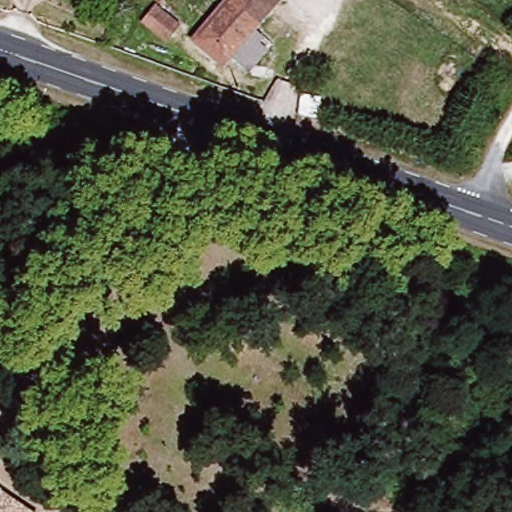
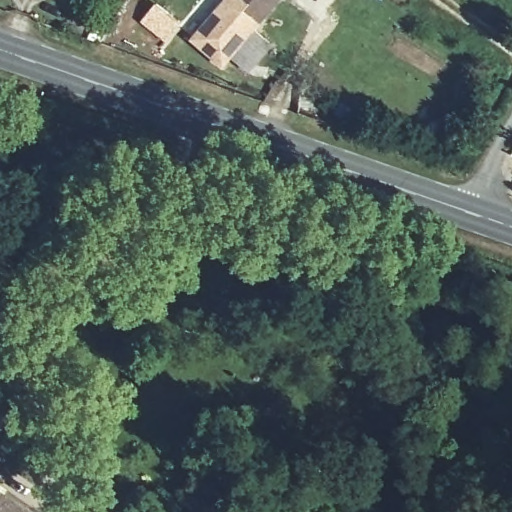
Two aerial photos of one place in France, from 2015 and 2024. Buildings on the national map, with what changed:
unchanged [(259,0),(267,8),(218,64),(187,37),(220,0),(259,0)]
unchanged [(259,0),(274,0),(267,8),(259,0)]
unchanged [(181,25),(170,41),(148,21),(158,7),(181,25)]
unchanged [(0,500),(17,512),(0,512),(0,500)]

